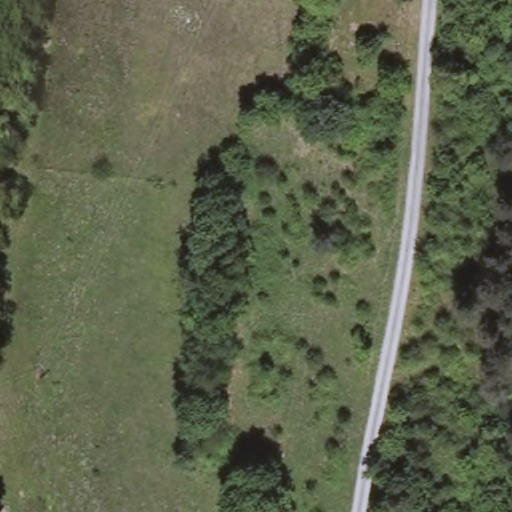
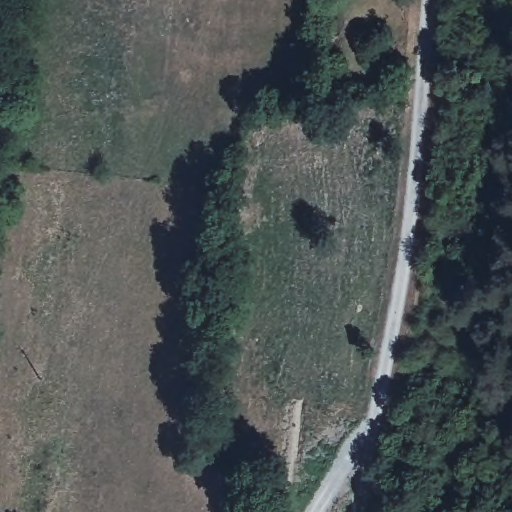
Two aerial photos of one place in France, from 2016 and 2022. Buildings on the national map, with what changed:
[]

